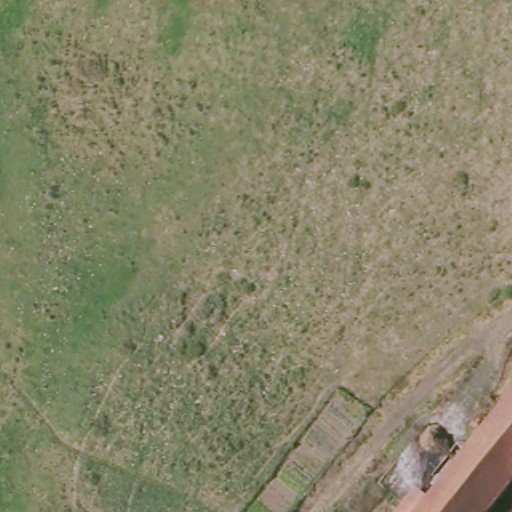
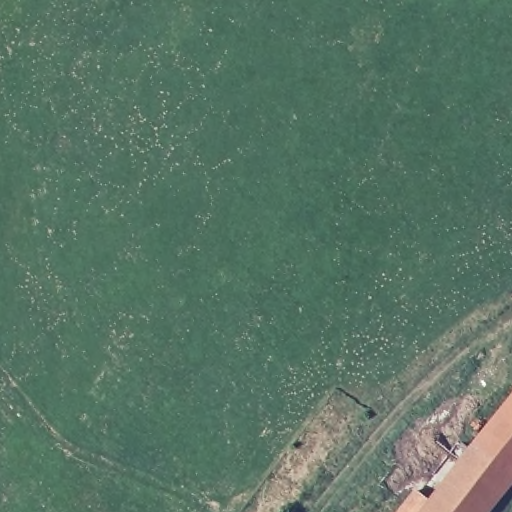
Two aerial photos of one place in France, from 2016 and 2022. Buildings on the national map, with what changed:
unchanged [(394,512),(411,492),(425,503),(512,391),(512,476),(484,512),(394,512)]

